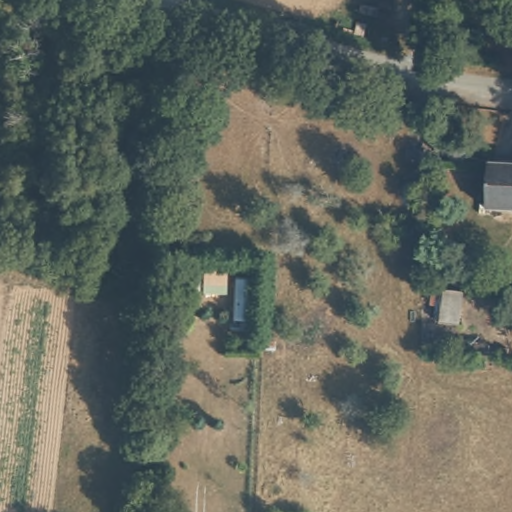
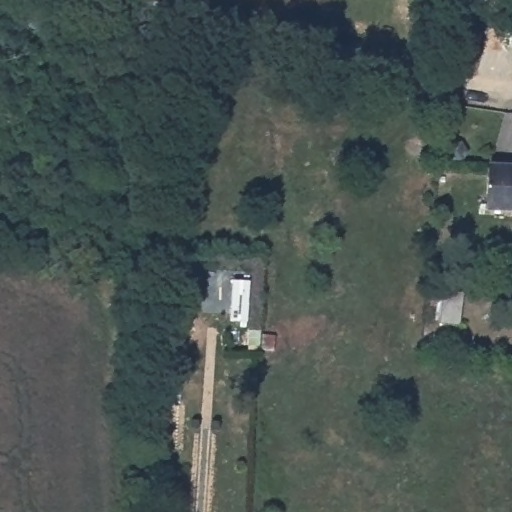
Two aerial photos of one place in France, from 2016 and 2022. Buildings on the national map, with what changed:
unchanged [(512,162),(512,207),(489,205),(492,160),(512,162)]
unchanged [(434,324),(439,289),(464,292),(460,326),(434,324)]

